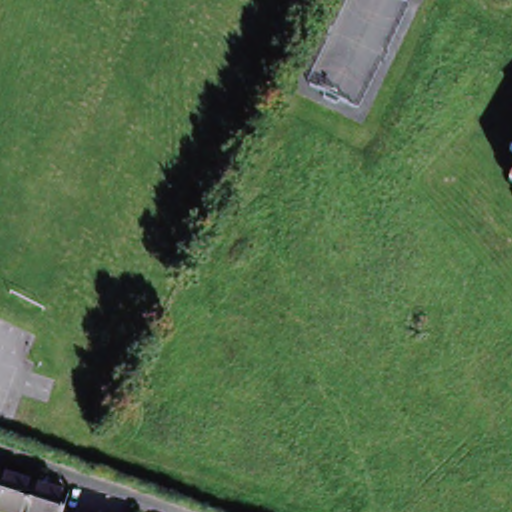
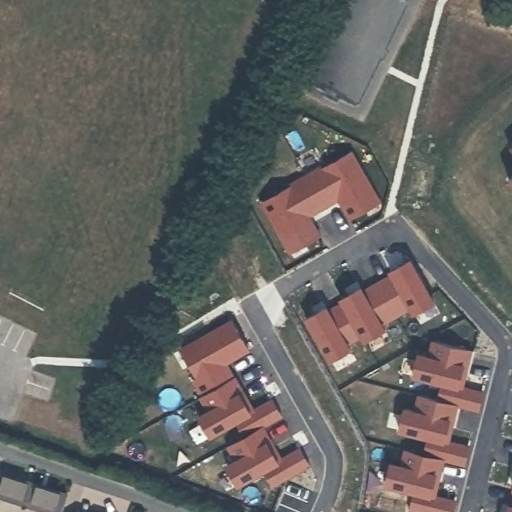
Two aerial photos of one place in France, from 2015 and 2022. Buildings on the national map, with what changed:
new [(256,205),(288,189),(286,186),(318,169),(319,171),(348,155),(373,200),(358,207),(361,212),(346,222),(343,216),(312,234),(314,238),(301,247),(299,241),(283,250),(256,205)]
new [(322,310),(325,315),(339,306),(336,302),(356,290),(360,295),(388,276),(387,273),(406,262),(429,303),(411,315),(408,310),(379,326),(381,332),(361,343),(358,338),(343,346),(346,351),(326,363),(303,322),(322,310)]
new [(243,353),(230,361),(228,357),(219,362),(229,380),(226,381),(238,400),(240,399),(248,413),(267,402),(276,418),(254,431),(266,451),(269,448),(276,462),(294,451),(304,467),(268,487),(261,472),(233,488),(222,468),(233,462),(225,448),(240,438),(231,421),(204,437),(193,417),(204,411),(188,382),(191,380),(184,366),(188,365),(181,350),(228,323),(243,353)]
new [(466,350),(459,371),(463,373),(459,388),(481,393),(476,412),(451,405),(446,426),(450,428),(447,445),(467,448),(462,467),(438,460),(433,483),(436,484),(432,498),(453,505),(451,512),(407,512),(412,495),(382,486),(387,467),(399,470),(403,453),(421,457),(424,440),(395,433),(400,410),(414,413),(418,398),(435,403),(439,384),(409,377),(415,355),(428,358),(430,343),(466,350)]
unchanged [(0,488),(5,490),(7,482),(41,493),(35,512),(0,512),(0,488)]
new [(510,491),(512,482),(512,492),(510,491)]
unchanged [(43,494),(78,505),(75,512),(37,512),(43,494)]
new [(506,507),(509,508),(512,496),(512,512),(505,512),(506,507)]

